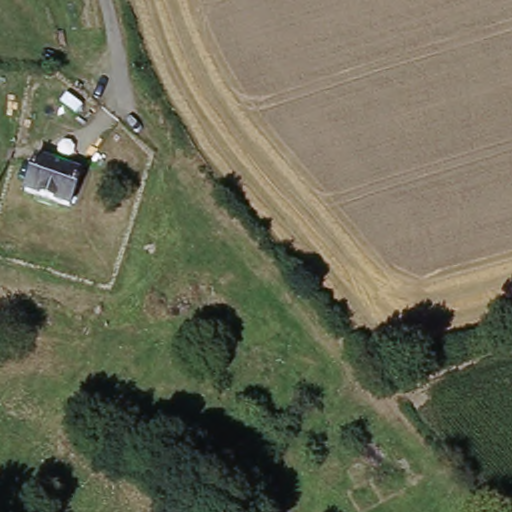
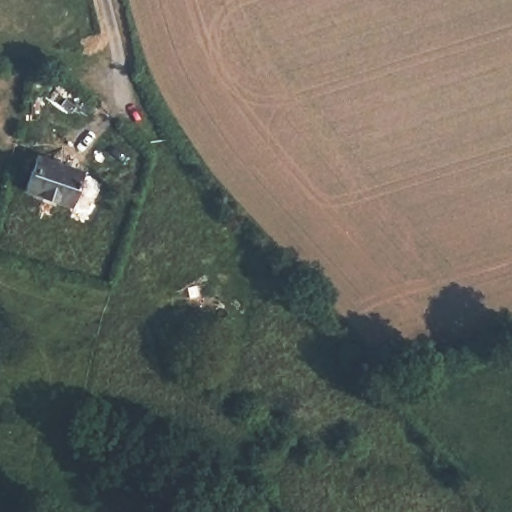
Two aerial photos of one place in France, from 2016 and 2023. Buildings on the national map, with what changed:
unchanged [(83,179),(73,214),(26,200),(36,165),(83,179)]

